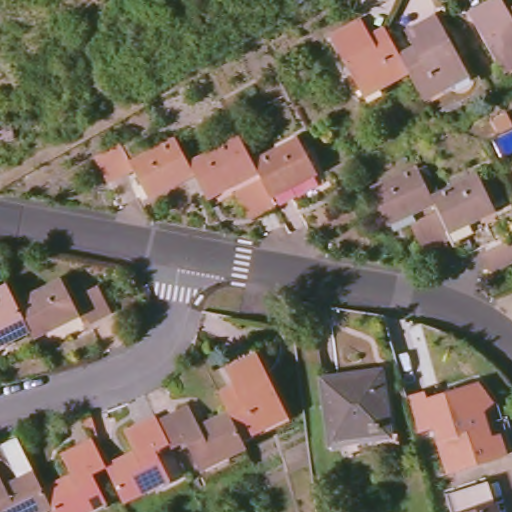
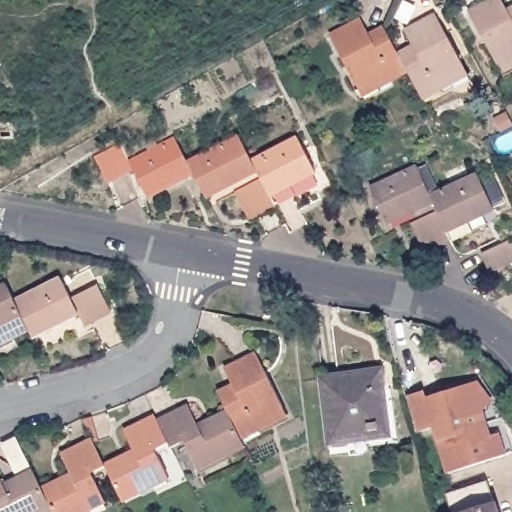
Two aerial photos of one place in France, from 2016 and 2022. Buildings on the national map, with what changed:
unchanged [(467,8),(482,0),(501,0),(504,5),(512,1),(512,56),(497,64),(467,8)]
unchanged [(415,81),(409,69),(401,55),(400,53),(414,45),(407,31),(438,14),(469,71),(423,96),(415,81)]
unchanged [(362,95),(330,33),(360,17),(368,33),(384,24),(400,53),(401,55),(409,69),(362,95)]
unchanged [(13,118),(15,135),(0,137),(0,120),(13,118)]
unchanged [(202,184),(196,173),(190,161),(240,135),(253,158),(260,171),(210,199),(202,184)]
unchanged [(236,190),(262,176),(260,171),(253,158),(297,135),(316,172),(302,179),(306,188),(277,203),(250,217),(236,190)]
unchanged [(121,141),(130,160),(176,136),(190,161),(196,173),(150,197),(135,169),(110,182),(97,155),(121,141)]
unchanged [(386,225),(370,189),(418,166),(431,194),(435,202),(386,225)]
unchanged [(410,223),(438,210),(435,202),(431,194),(478,173),(495,210),(449,231),(451,236),(422,250),(410,223)]
unchanged [(490,270),(482,254),(512,240),(512,261),(510,261),(490,270)]
unchanged [(62,282),(71,299),(98,286),(112,314),(85,327),(79,315),(33,337),(29,329),(16,304),(17,304),(62,282)]
unchanged [(7,286),(17,304),(16,304),(29,329),(0,344),(0,289),(7,286)]
unchanged [(230,416),(228,414),(218,394),(232,387),(225,373),(257,359),(287,418),(242,440),(230,416)]
unchanged [(383,365),(395,434),(328,445),(318,375),(383,365)]
unchanged [(427,389),(428,396),(480,383),(492,399),(492,400),(493,401),(492,402),(492,403),(477,415),(480,425),(488,423),(492,436),(501,433),(507,455),(450,473),(436,425),(418,430),(409,394),(427,389)]
unchanged [(188,408),(197,428),(228,414),(230,416),(242,440),(245,448),(197,472),(184,445),(172,451),(169,446),(166,439),(162,433),(157,423),(188,408)]
unchanged [(133,452),(124,434),(155,419),(157,423),(162,433),(166,439),(169,446),(155,453),(167,479),(122,501),(106,468),(105,466),(133,452)]
unchanged [(42,490),(75,474),(65,453),(92,441),(100,455),(105,466),(106,468),(92,475),(105,502),(86,512),(53,512),(52,510),(42,490)]
unchanged [(493,475),(505,512),(460,512),(453,487),(493,475)]
unchanged [(7,492),(35,478),(42,490),(52,510),(49,512),(0,512),(0,478),(7,492)]

